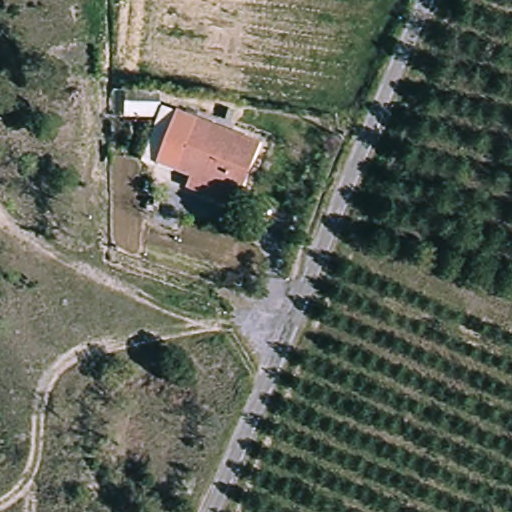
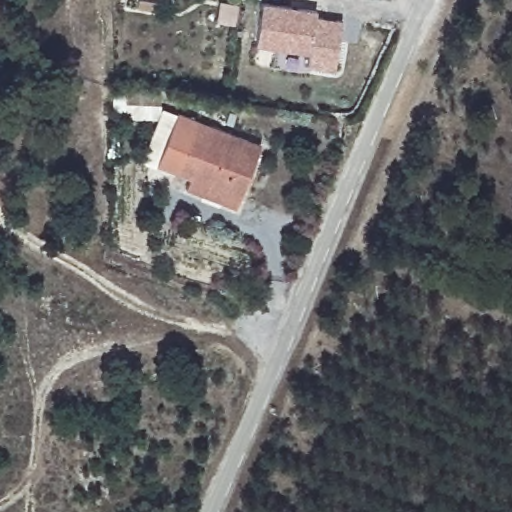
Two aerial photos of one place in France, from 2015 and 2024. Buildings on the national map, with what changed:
new [(334,70),(307,66),(309,53),(256,45),(262,1),(317,8),(316,16),(342,19),(334,70)]
unchanged [(119,104),(120,96),(151,101),(150,109),(119,104)]
unchanged [(184,189),(188,177),(155,165),(173,113),(259,145),(239,196),(234,207),(184,189)]

